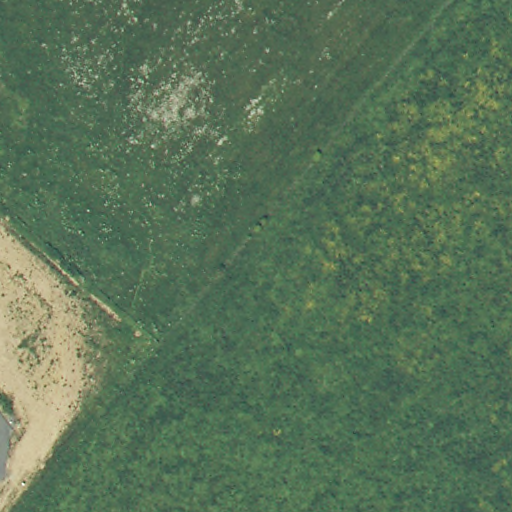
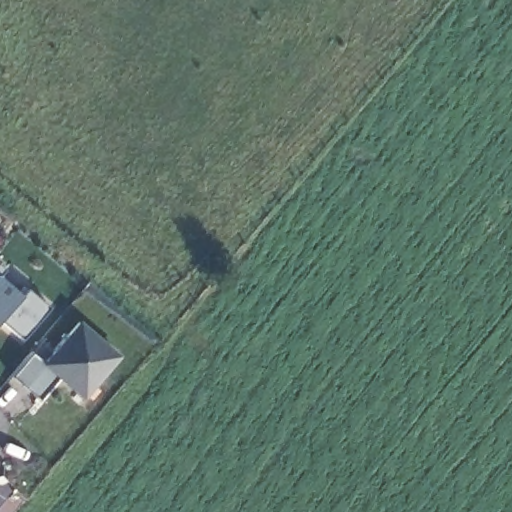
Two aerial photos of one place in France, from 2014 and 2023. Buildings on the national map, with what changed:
new [(22,339),(1,322),(0,323),(0,266),(10,275),(5,280),(20,292),(25,286),(48,306),(22,339)]
new [(30,354),(42,364),(77,322),(118,355),(82,398),(56,377),(37,400),(10,377),(30,354)]

